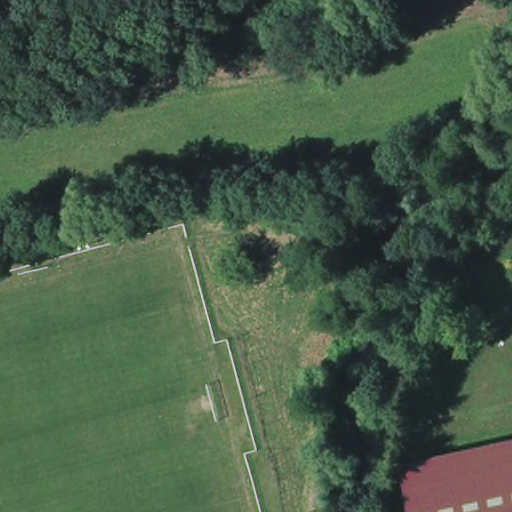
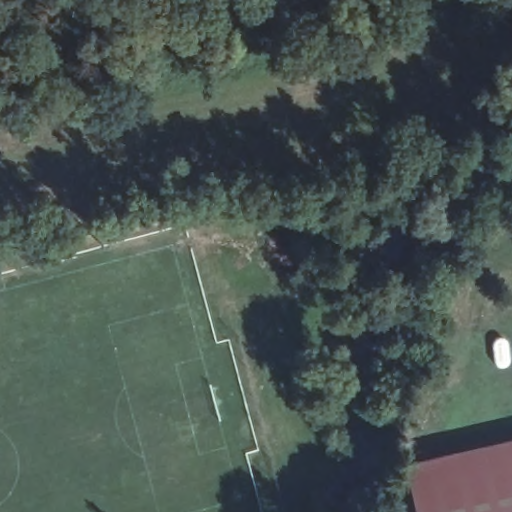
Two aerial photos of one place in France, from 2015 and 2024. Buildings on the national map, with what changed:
unchanged [(419,512),(407,465),(417,463),(415,453),(434,449),(437,459),(512,443),(512,512),(419,512)]

